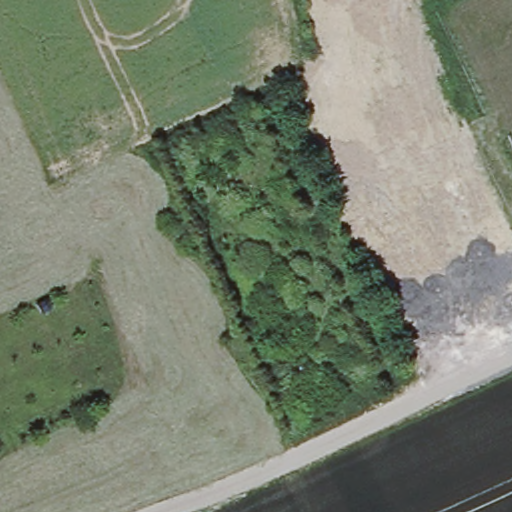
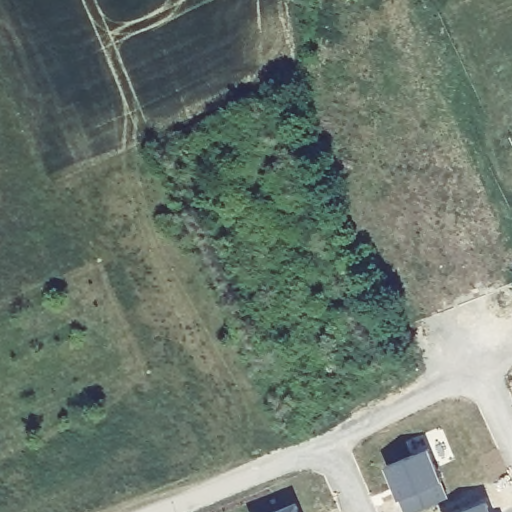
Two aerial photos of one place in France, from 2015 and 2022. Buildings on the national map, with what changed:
new [(445,499),(416,512),(403,512),(385,470),(427,453),(445,499)]
new [(489,512),(469,512),(487,504),(489,512)]
new [(297,512),(281,512),(295,507),(297,512)]

